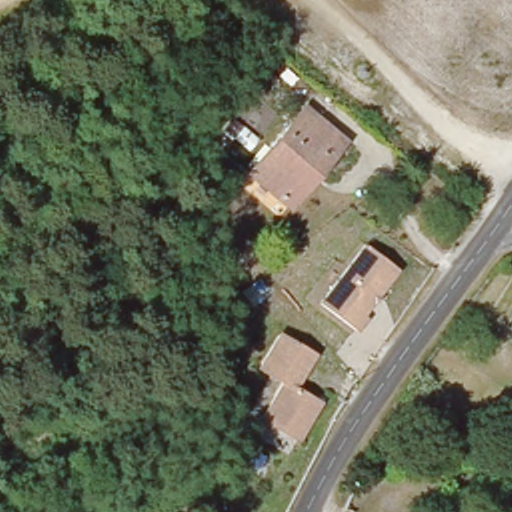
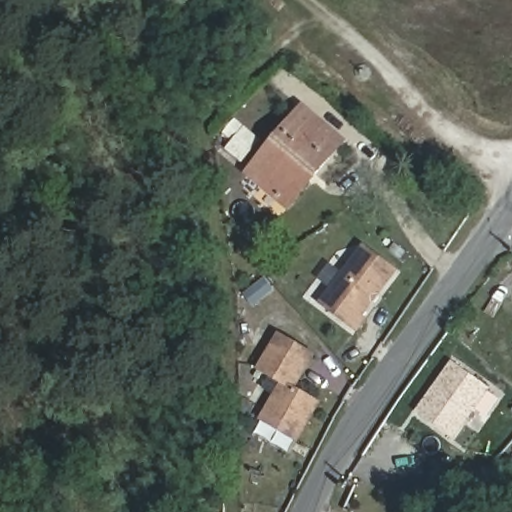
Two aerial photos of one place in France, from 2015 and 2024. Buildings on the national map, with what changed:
unchanged [(280,201),(248,175),(299,108),(345,142),(318,174),(293,211),(280,201)]
unchanged [(396,274),(360,318),(363,321),(352,334),(318,306),(365,249),(396,274)]
unchanged [(318,360),(295,391),(319,408),(294,443),(259,420),(284,385),(262,369),(284,336),(318,360)]
new [(453,360),(492,388),(456,440),(416,412),(453,360)]

